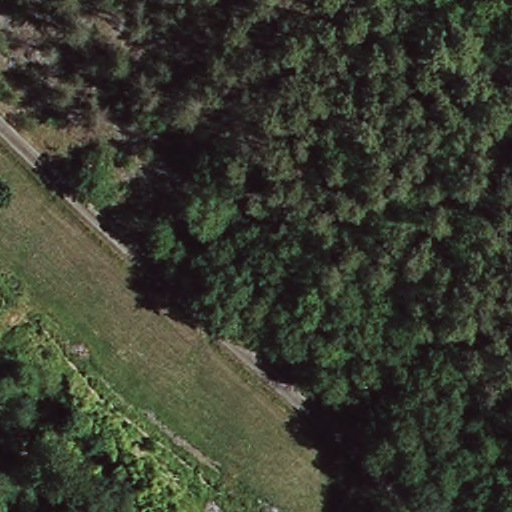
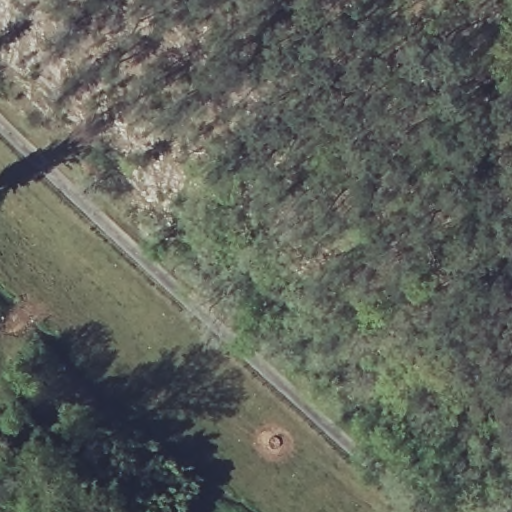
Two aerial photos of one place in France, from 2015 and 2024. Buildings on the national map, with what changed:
unchanged [(92,151),(107,166),(99,175),(84,158),(92,151)]

